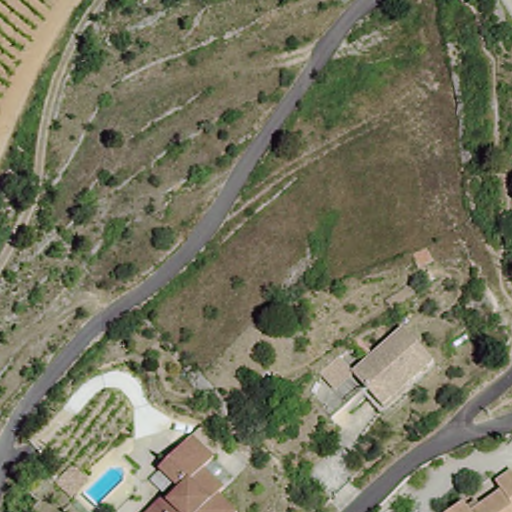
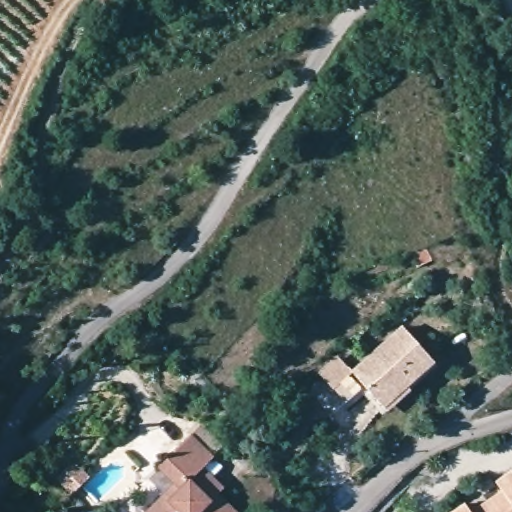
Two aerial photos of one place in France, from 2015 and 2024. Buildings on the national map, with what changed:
unchanged [(402,329),(437,364),(390,407),(356,374),(402,329)]
unchanged [(339,357),(354,373),(336,392),(318,374),(339,357)]
unchanged [(198,439),(222,459),(212,469),(234,488),(229,494),(249,511),(248,512),(160,512),(184,486),(168,472),(198,439)]
unchanged [(504,494),(498,484),(512,475),(512,512),(475,512),(504,494)]
unchanged [(466,506),(469,512),(456,512),(466,506)]

